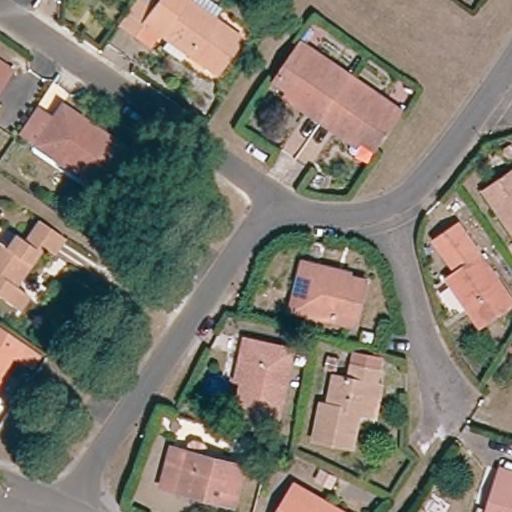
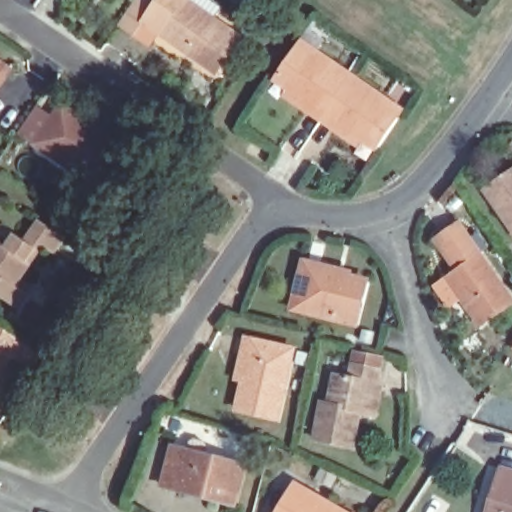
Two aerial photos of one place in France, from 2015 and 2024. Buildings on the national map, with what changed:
unchanged [(119,27),(138,0),(139,0),(153,11),(161,0),(196,0),(216,14),(212,19),(236,36),(211,73),(170,44),(156,35),(143,26),(136,39),(119,27)]
unchanged [(342,136),(294,103),(285,97),(292,89),(274,76),(301,41),(400,109),(375,145),(357,132),(349,141),(342,136)]
unchanged [(9,69),(4,76),(0,73),(0,62),(9,69)]
unchanged [(62,123),(71,110),(137,156),(111,197),(23,136),(42,109),(62,123)]
unchanged [(512,168),(512,227),(484,188),(512,168)]
unchanged [(64,241),(54,257),(42,250),(20,282),(16,279),(10,287),(28,299),(19,311),(0,298),(0,243),(5,247),(14,235),(24,242),(37,222),(64,241)]
unchanged [(512,299),(512,304),(479,327),(448,281),(459,273),(436,239),(459,223),(512,299)]
unchanged [(303,296),(311,265),(331,271),(328,280),(341,284),(344,278),(360,283),(349,325),(309,314),(299,312),(303,296)]
unchanged [(24,348),(42,360),(33,372),(16,364),(9,360),(0,378),(0,332),(24,348)]
unchanged [(287,351),(273,419),(235,410),(241,381),(232,378),(235,360),(239,340),(287,351)]
unchanged [(384,390),(377,418),(364,416),(353,413),(350,424),(357,425),(352,449),(313,442),(322,407),(328,409),(335,382),(345,384),(349,368),(355,349),(383,355),(377,375),(375,388),(384,390)]
unchanged [(175,445),(247,468),(235,508),(210,499),(212,493),(179,482),(175,492),(161,486),(175,445)]
unchanged [(512,512),(493,512),(495,504),(490,504),(497,469),(512,473),(512,512)]
unchanged [(299,486),(314,494),(309,501),(327,511),(332,503),(348,512),(283,512),(299,486)]

